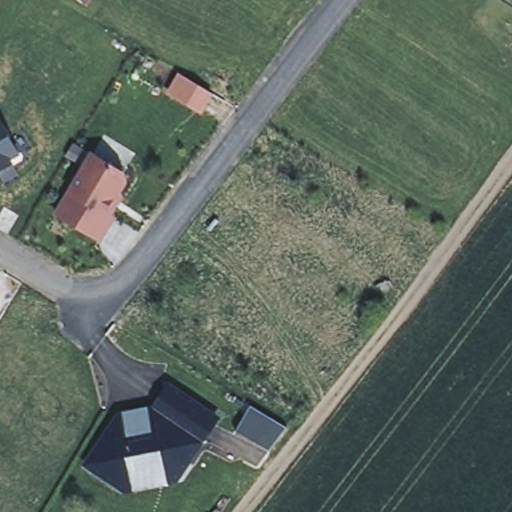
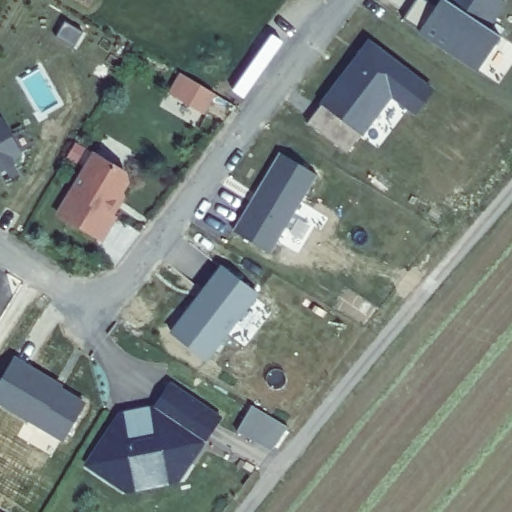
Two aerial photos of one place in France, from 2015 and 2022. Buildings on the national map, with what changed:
new [(508,3),(490,30),(501,36),(477,73),(417,32),(420,28),(405,17),(415,0),(429,0),(437,4),(439,0),(503,0),(508,3)]
new [(433,90),(415,112),(392,94),(346,152),(308,123),(369,42),(433,90)]
unchanged [(164,96),(175,78),(208,97),(199,116),(164,96)]
unchanged [(0,167),(0,116),(22,156),(0,167)]
unchanged [(130,175),(121,192),(124,195),(112,215),(117,218),(104,241),(54,213),(68,191),(91,153),(130,175)]
new [(318,175),(271,253),(232,231),(279,153),(318,175)]
new [(260,294),(207,362),(169,332),(221,265),(260,294)]
new [(63,384),(62,387),(87,403),(62,443),(0,405),(0,379),(15,356),(63,384)]
new [(223,417),(206,444),(203,442),(208,435),(159,401),(171,382),(223,417)]
unchanged [(208,435),(182,480),(129,494),(82,463),(115,410),(159,401),(208,435)]
new [(289,427),(271,451),(236,432),(252,406),(289,427)]

